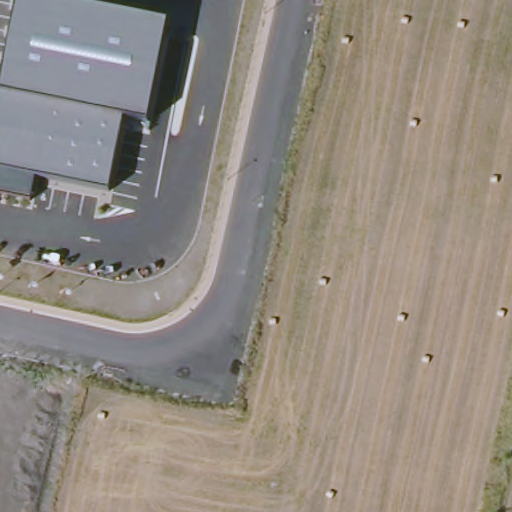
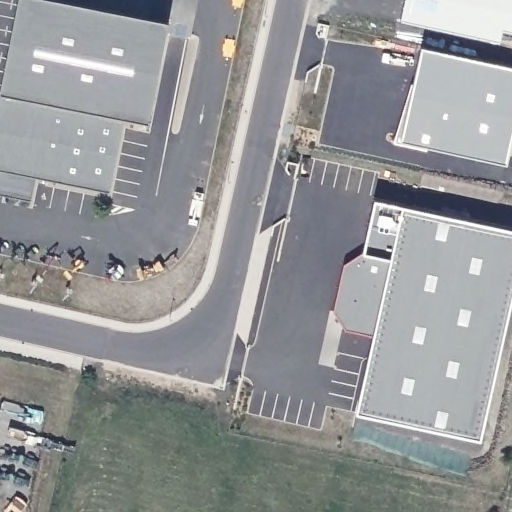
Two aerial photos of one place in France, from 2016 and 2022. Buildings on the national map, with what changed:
unchanged [(122,114),(107,187),(32,172),(27,196),(0,191),(0,89),(17,0),(68,0),(166,20),(146,119),(122,114)]
new [(422,47),(512,67),(512,143),(507,165),(400,141),(422,47)]
new [(357,411),(373,335),(345,329),(334,310),(345,265),(364,251),(375,199),(512,229),(512,299),(481,440),(357,411)]

